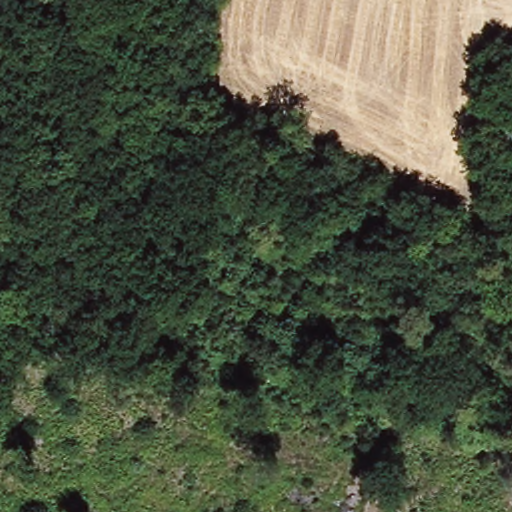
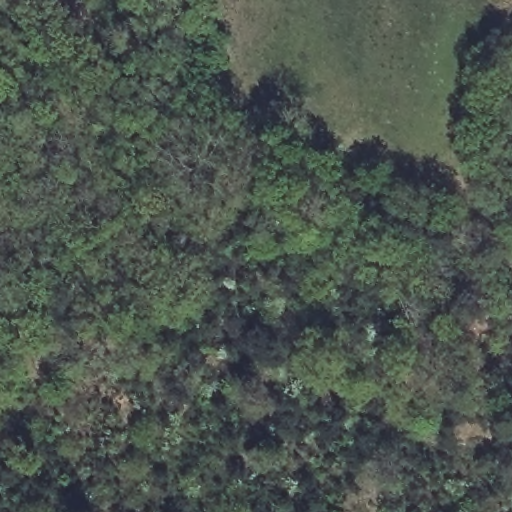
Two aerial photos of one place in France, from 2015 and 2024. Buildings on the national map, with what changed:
[]

